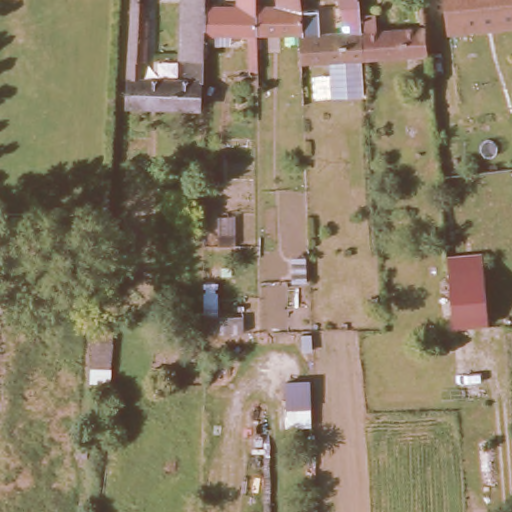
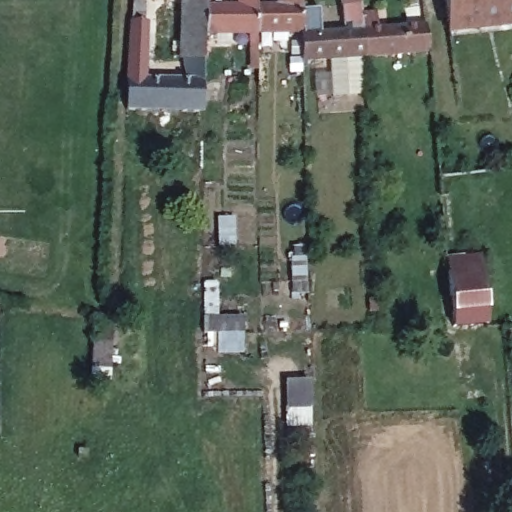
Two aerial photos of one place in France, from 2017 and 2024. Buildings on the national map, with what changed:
unchanged [(151,1),(149,61),(145,62),(144,80),(207,83),(206,112),(132,109),(135,0),(143,0),(151,1)]
unchanged [(185,68),(185,0),(207,0),(207,8),(207,38),(207,67),(185,68)]
unchanged [(238,8),(238,0),(256,0),(256,8),(257,37),(207,38),(207,8),(238,8)]
unchanged [(273,0),(301,0),(302,7),(273,7),(273,0)]
unchanged [(424,25),(428,55),(362,59),(302,62),(302,36),(305,36),(305,28),(310,27),(311,35),(347,32),(347,24),(337,24),(335,0),(366,0),(367,11),(377,10),(380,29),(424,25)]
unchanged [(447,22),(446,0),(512,0),(512,27),(497,29),(448,33),(447,22)]
unchanged [(273,7),(302,7),(305,28),(305,36),(302,36),(257,37),(256,8),(273,7)]
unchanged [(442,126),(452,270),(455,330),(449,330),(434,125),(442,126)]
unchanged [(491,326),(458,328),(452,270),(482,267),(491,326)]
unchanged [(506,313),(512,314),(512,326),(507,326),(505,326),(506,313)]
unchanged [(247,338),(201,336),(200,318),(245,316),(247,338)]
unchanged [(113,321),(112,338),(124,340),(121,371),(87,370),(90,321),(113,321)]
unchanged [(313,406),(285,409),(284,381),(312,379),(313,406)]

